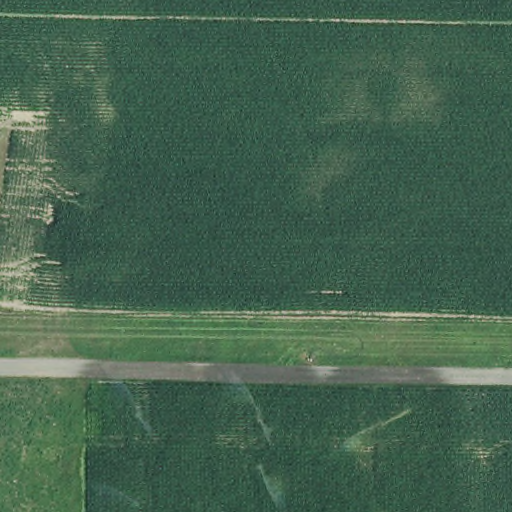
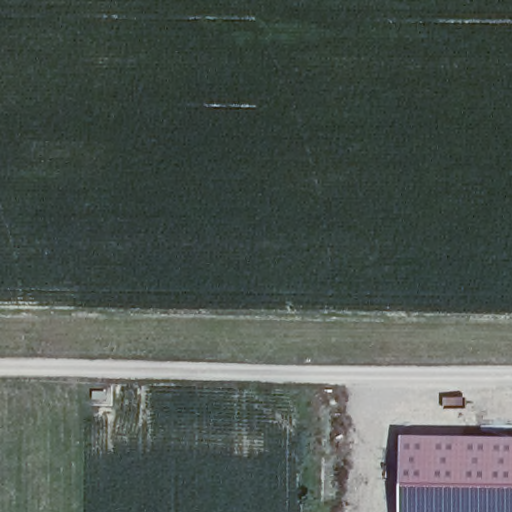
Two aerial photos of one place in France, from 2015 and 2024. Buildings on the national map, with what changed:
new [(512,431),(512,512),(396,512),(396,428),(512,431)]

